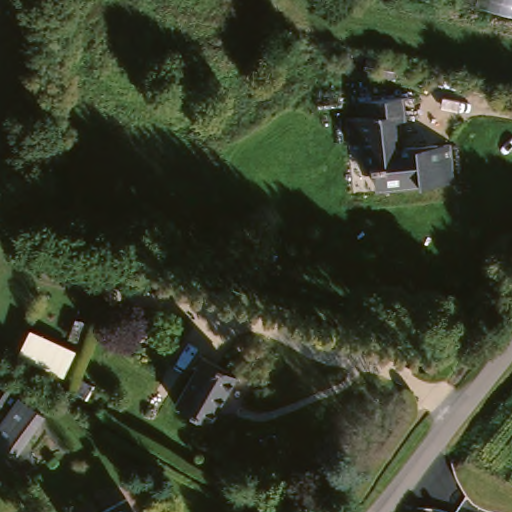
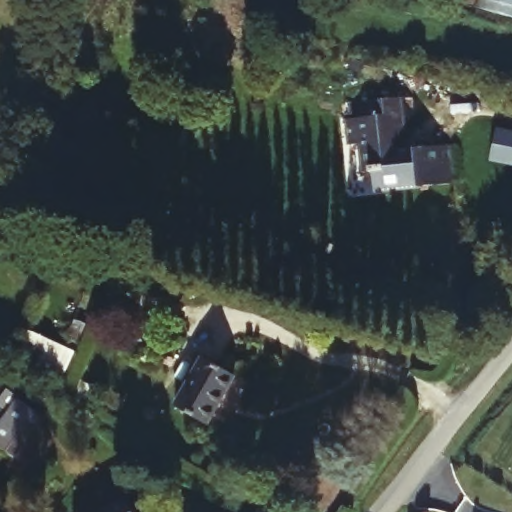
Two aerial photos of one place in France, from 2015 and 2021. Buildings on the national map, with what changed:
unchanged [(477,0),(512,0),(512,19),(473,10),(477,0)]
unchanged [(385,187),(378,165),(368,165),(368,146),(356,147),(352,116),(362,115),(360,99),(398,94),(401,112),(392,115),(397,149),(453,139),(457,175),(385,187)]
new [(489,162),(497,128),(512,131),(512,167),(489,162)]
unchanged [(28,330),(74,350),(62,375),(17,355),(28,330)]
unchanged [(212,422),(179,403),(209,353),(240,373),(212,422)]
unchanged [(0,446),(0,423),(10,409),(0,402),(0,398),(7,389),(18,397),(42,415),(14,455),(0,446)]
unchanged [(132,512),(91,512),(124,496),(132,512)]

